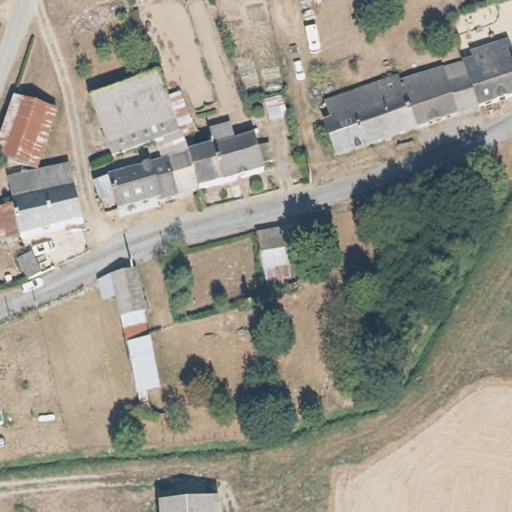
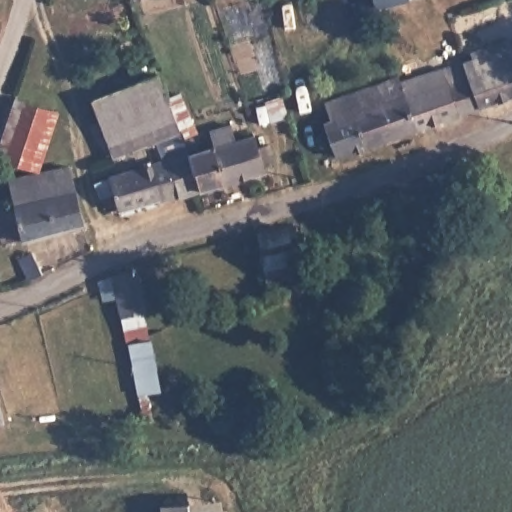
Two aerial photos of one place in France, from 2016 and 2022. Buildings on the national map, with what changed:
new [(375,8),(373,0),(407,0),(375,8)]
unchanged [(445,62),(460,57),(507,42),(511,57),(512,56),(512,97),(476,109),(462,114),(412,130),(395,79),(445,62)]
unchanged [(94,99),(160,73),(170,97),(184,92),(201,140),(164,152),(159,142),(115,157),(94,99)]
unchanged [(339,154),(326,122),(330,120),(326,102),(395,79),(412,130),(339,154)]
unchanged [(34,172),(0,163),(0,148),(15,104),(55,115),(34,172)]
unchanged [(197,152),(217,147),(212,132),(232,126),(237,140),(261,133),(274,166),(207,184),(186,190),(132,205),(129,192),(112,195),(107,178),(174,159),(197,152)]
unchanged [(85,222),(26,235),(16,183),(71,171),(85,222)]
unchanged [(292,238),(300,268),(263,277),(257,245),(292,238)]
unchanged [(16,253),(32,245),(40,259),(24,267),(16,253)]
unchanged [(122,296),(110,299),(104,282),(119,276),(141,269),(150,308),(145,310),(150,331),(129,337),(125,313),(122,296)]
unchanged [(130,342),(150,338),(160,377),(137,383),(130,342)]
unchanged [(0,422),(0,407),(5,422),(0,422)]
unchanged [(221,512),(168,512),(167,502),(220,498),(221,512)]

